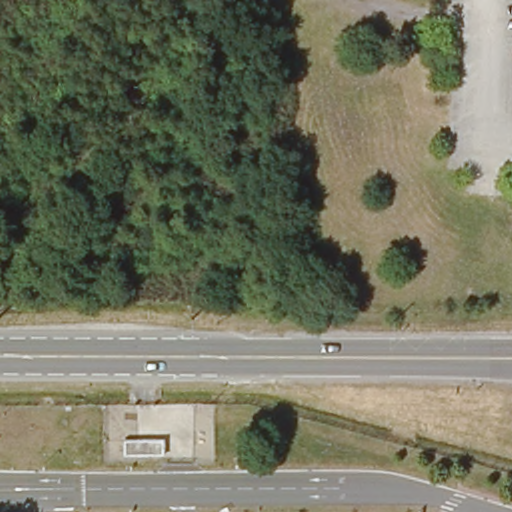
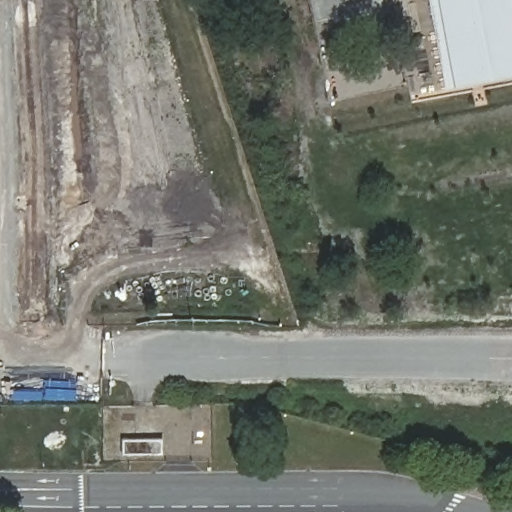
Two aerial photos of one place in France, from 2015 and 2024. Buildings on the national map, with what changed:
new [(428,0),(512,0),(512,79),(445,90),(428,0)]
unchanged [(161,439),(161,455),(119,454),(121,439),(161,439)]

